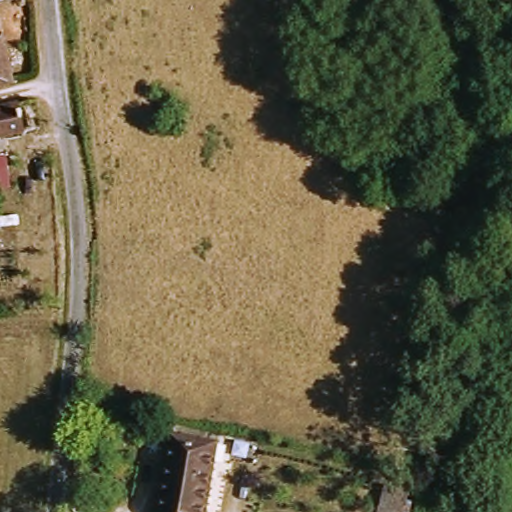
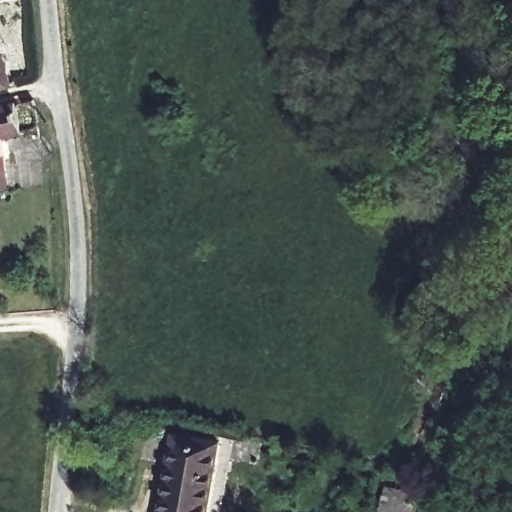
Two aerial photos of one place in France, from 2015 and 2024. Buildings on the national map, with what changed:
unchanged [(0,89),(0,38),(0,37),(13,86),(0,89)]
unchanged [(17,98),(21,128),(0,133),(0,100),(17,96),(17,98)]
unchanged [(172,437),(217,444),(206,512),(160,512),(172,437)]
unchanged [(382,486),(415,496),(411,512),(378,512),(382,486)]

